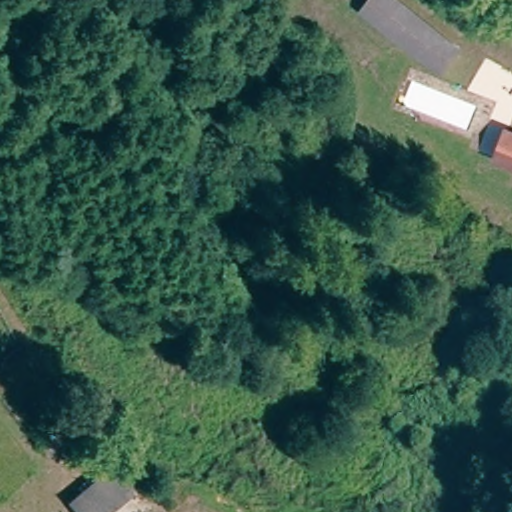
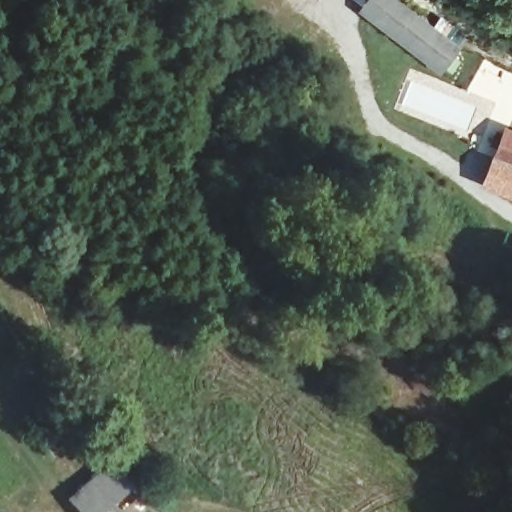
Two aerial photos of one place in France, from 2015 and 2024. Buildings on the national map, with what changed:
unchanged [(400,0),(459,54),(441,76),(366,9),(374,0),(400,0)]
new [(512,129),(512,199),(481,187),(505,126),(512,129)]
demolished [(508,130),(512,132),(512,161),(500,155),(497,154),(508,130)]
unchanged [(141,492),(116,512),(82,512),(69,497),(115,462),(141,492)]

